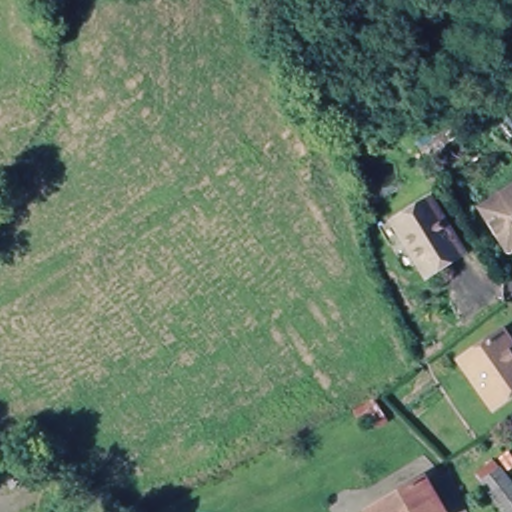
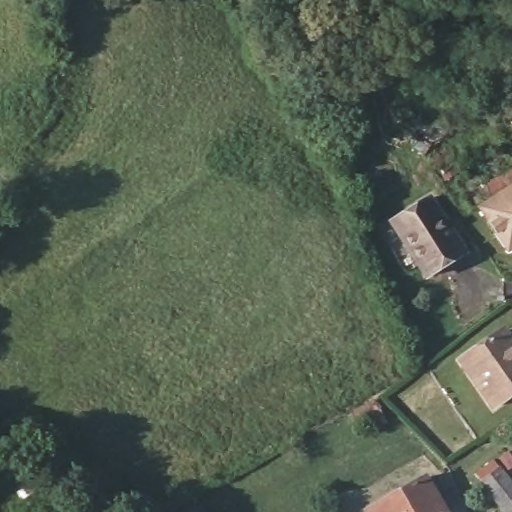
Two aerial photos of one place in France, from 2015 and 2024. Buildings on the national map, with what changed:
unchanged [(512,185),(512,249),(478,215),(512,185)]
unchanged [(391,227),(420,197),(471,252),(441,281),(391,227)]
unchanged [(463,357),(503,329),(512,339),(512,393),(497,404),(463,357)]
unchanged [(512,488),(512,512),(504,512),(477,478),(494,464),(512,488)]
unchanged [(447,512),(362,512),(360,508),(427,472),(447,512)]

